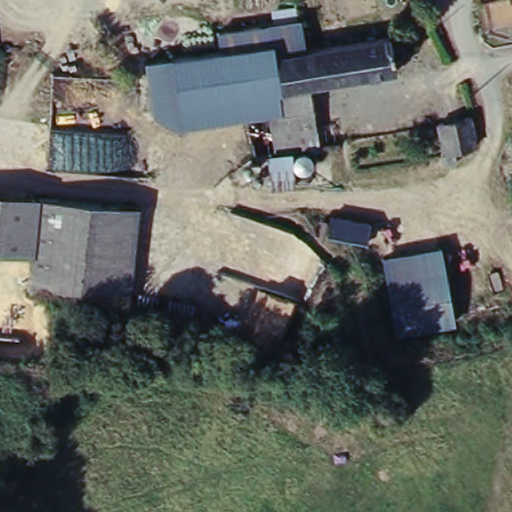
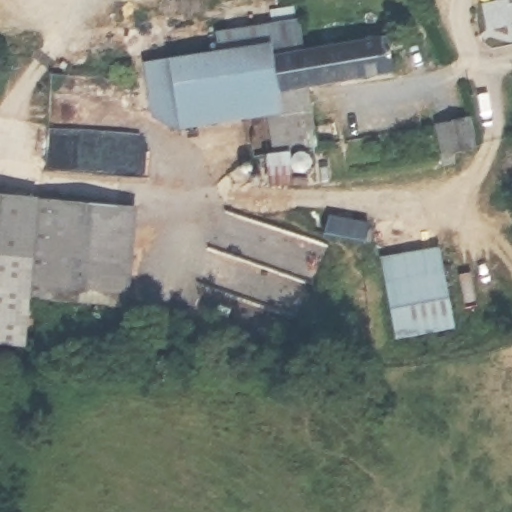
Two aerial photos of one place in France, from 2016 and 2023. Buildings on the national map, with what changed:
unchanged [(303,88),(307,115),(282,120),(281,112),(277,93),(222,101),(214,52),(212,35),(294,20),(300,52),(385,39),(392,74),(303,88)]
unchanged [(254,116),(177,129),(173,108),(147,113),(141,64),(214,52),(222,101),(277,93),(281,112),(254,116)]
unchanged [(281,112),(282,120),(307,115),(314,164),(294,167),(296,187),(266,190),(262,162),(271,158),(261,116),(281,112)]
unchanged [(477,151),(443,160),(434,130),(470,122),(471,125),(477,151)]
demolished [(446,209),(478,190),(488,209),(476,215),(479,219),(458,231),(446,209)]
unchanged [(0,199),(37,203),(29,262),(0,259),(0,199)]
unchanged [(139,214),(134,301),(28,293),(29,262),(37,203),(139,214)]
unchanged [(330,244),(335,222),(370,232),(365,253),(330,244)]
unchanged [(440,253),(452,330),(396,339),(383,262),(440,253)]
new [(28,293),(32,293),(26,350),(0,347),(0,259),(29,262),(28,293)]

